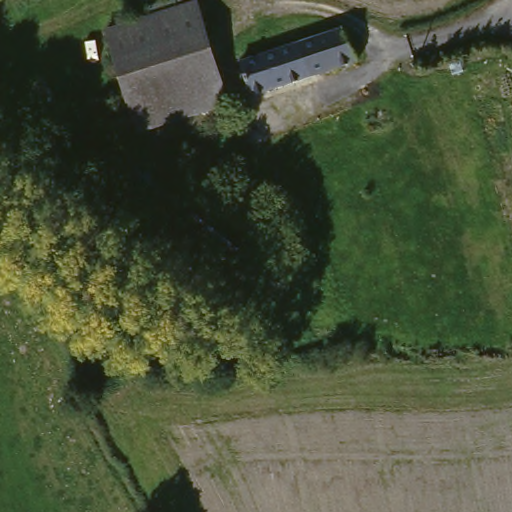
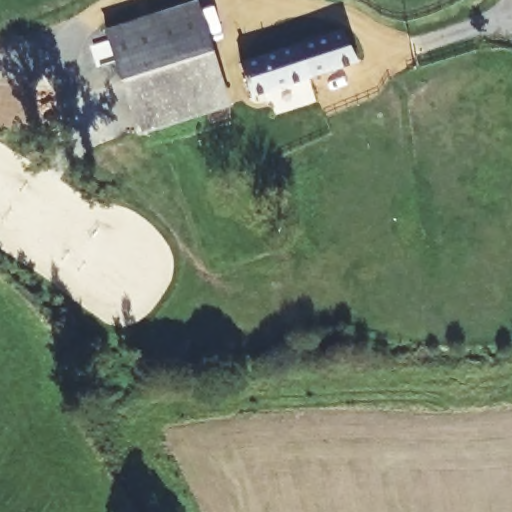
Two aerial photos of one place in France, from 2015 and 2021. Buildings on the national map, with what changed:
unchanged [(107,30),(196,4),(205,33),(116,60),(107,30)]
unchanged [(345,26),(363,58),(257,93),(245,59),(345,26)]
unchanged [(205,33),(229,105),(139,134),(116,60),(205,33)]

